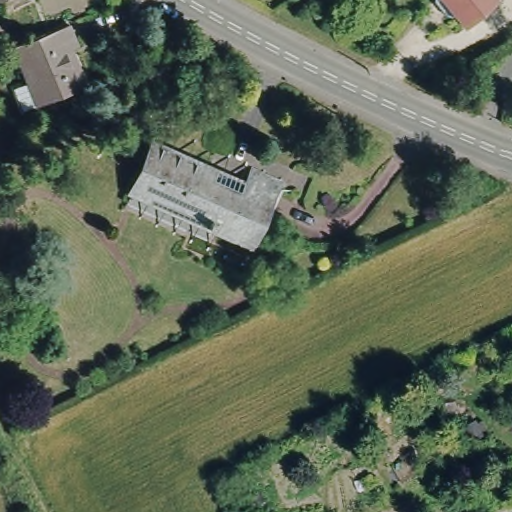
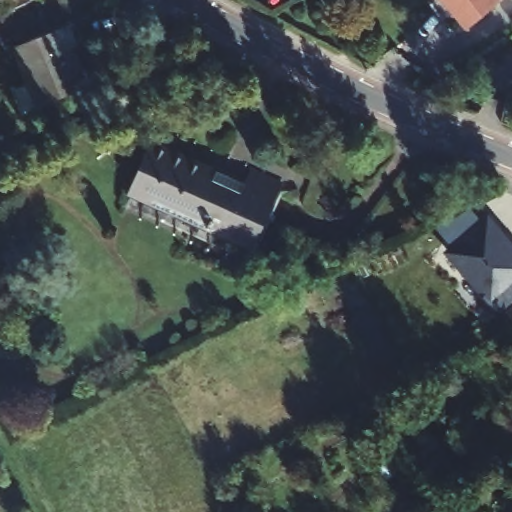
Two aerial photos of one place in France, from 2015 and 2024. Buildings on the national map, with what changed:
unchanged [(494,6),(464,30),(451,15),(455,11),(446,0),(495,0),(492,3),(494,6)]
unchanged [(16,84),(32,77),(17,41),(63,23),(79,61),(85,60),(93,78),(42,100),(25,106),(16,84)]
unchanged [(206,227),(207,222),(148,197),(146,200),(129,193),(152,145),(214,172),(211,179),(240,192),(247,177),(274,189),(249,244),(206,227)]
new [(486,215),(512,246),(512,305),(497,317),(440,252),(486,215)]

